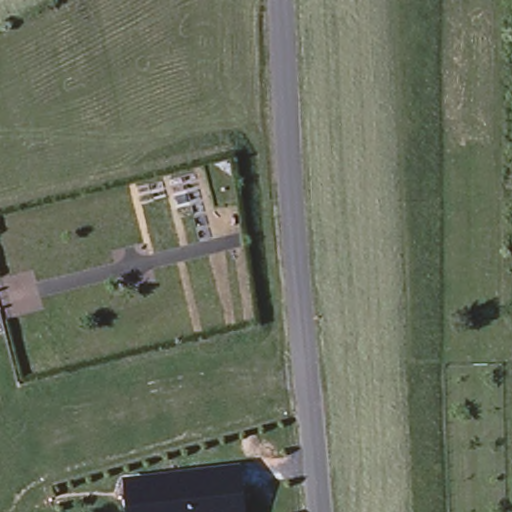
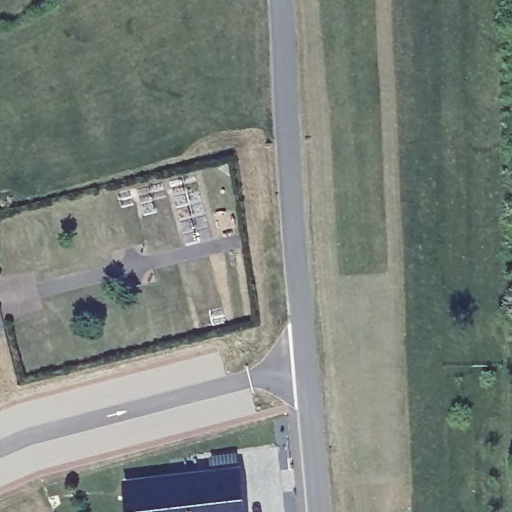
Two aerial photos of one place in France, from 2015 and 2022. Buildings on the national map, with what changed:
unchanged [(242,465),(246,512),(129,512),(124,478),(242,465)]

